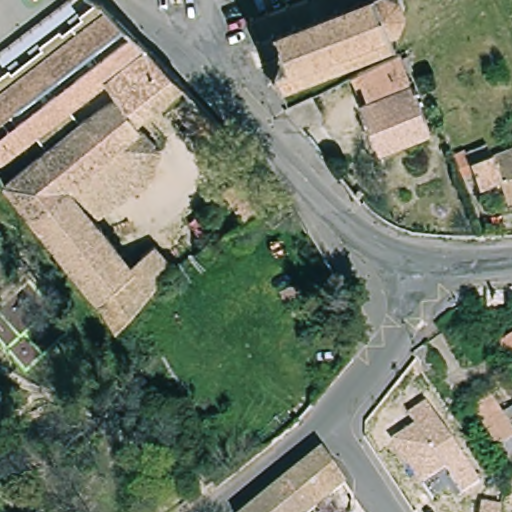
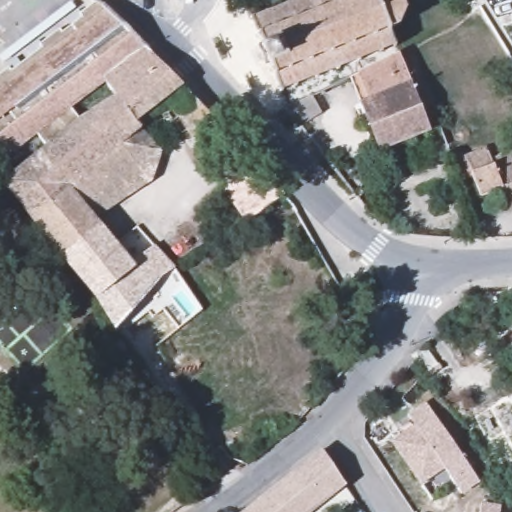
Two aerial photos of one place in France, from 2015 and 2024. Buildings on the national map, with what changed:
unchanged [(36,132),(29,137),(28,136),(0,156),(0,73),(8,67),(6,65),(16,57),(21,63),(33,55),(28,48),(38,41),(40,43),(60,29),(62,32),(73,24),(68,18),(78,11),(81,13),(99,0),(100,0),(143,42),(120,61),(122,65),(69,105),(81,122),(47,147),(36,132)]
unchanged [(254,32),(270,26),(292,17),(334,1),(335,0),(397,0),(392,2),(405,7),(411,24),(407,40),(396,44),(402,57),(285,104),(254,32)]
unchanged [(76,7),(4,62),(0,56),(0,55),(6,51),(72,2),(76,7)]
unchanged [(116,102),(137,85),(122,65),(120,61),(143,42),(178,79),(135,122),(141,131),(131,136),(82,121),(116,102)]
unchanged [(408,91),(365,106),(355,79),(398,61),(408,91)]
unchanged [(423,138),(373,155),(357,109),(365,106),(408,91),(423,138)]
unchanged [(235,151),(210,170),(188,144),(187,142),(191,139),(176,118),(191,102),(208,121),(235,151)]
unchanged [(290,123),(294,121),(320,109),(328,130),(305,141),(290,123)]
unchanged [(63,256),(1,179),(47,147),(81,122),(131,136),(141,131),(160,155),(162,157),(151,184),(94,219),(131,267),(156,249),(175,273),(157,286),(115,326),(63,256)]
unchanged [(500,203),(480,212),(468,189),(490,179),(490,174),(512,164),(512,221),(510,222),(500,203)]
unchanged [(246,229),(221,197),(244,175),(255,175),(278,201),(246,229)]
unchanged [(502,345),(512,339),(512,357),(510,358),(502,345)]
unchanged [(365,348),(355,360),(350,355),(360,343),(365,348)]
unchanged [(431,349),(445,368),(433,377),(420,358),(431,349)]
unchanged [(494,397),(512,421),(512,458),(478,410),(494,397)]
unchanged [(413,426),(407,414),(426,401),(481,483),(462,495),(442,468),(421,485),(390,442),(413,426)]
unchanged [(344,484),(310,512),(248,512),(321,451),(344,484)]
unchanged [(501,506),(501,512),(480,512),(481,502),(501,506)]

